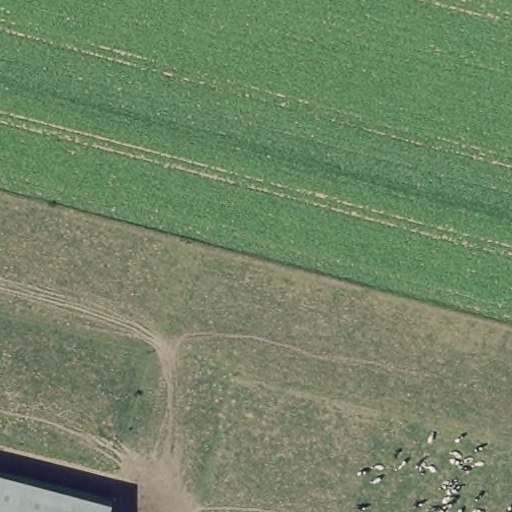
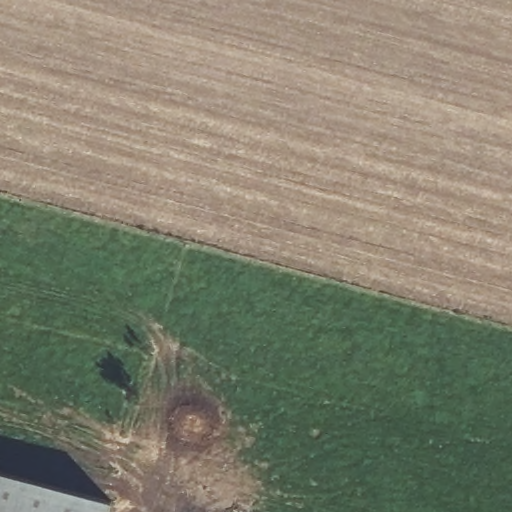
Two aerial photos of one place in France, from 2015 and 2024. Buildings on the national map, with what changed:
unchanged [(0,470),(115,501),(112,512),(0,512),(0,470)]

